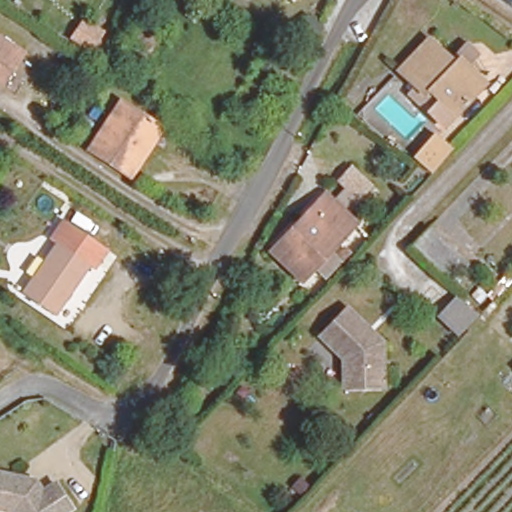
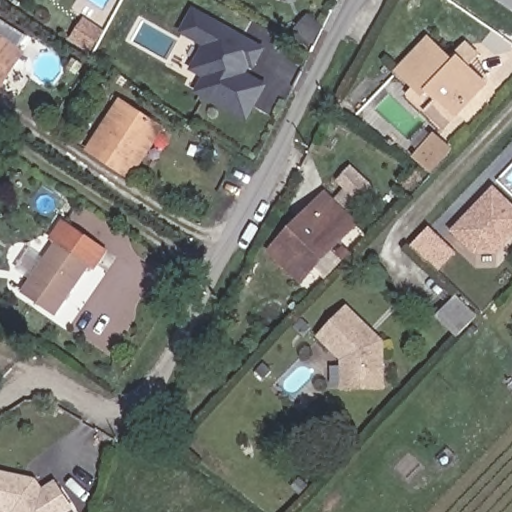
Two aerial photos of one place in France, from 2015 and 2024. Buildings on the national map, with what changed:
new [(247,123),(193,92),(201,79),(189,71),(202,47),(177,32),(193,7),(266,49),(255,70),(250,68),(247,75),(267,86),(247,123)]
unchanged [(91,52),(69,39),(82,17),(106,31),(91,52)]
unchanged [(449,60),(467,44),(483,58),(472,70),(491,87),(445,132),(406,97),(413,91),(395,75),(427,39),(449,60)]
unchanged [(11,95),(0,88),(0,42),(32,64),(11,95)]
unchanged [(141,163),(130,179),(90,151),(121,102),(154,124),(162,129),(141,163)]
unchanged [(422,167),(407,153),(425,132),(442,146),(422,167)]
unchanged [(342,191),(335,184),(351,166),(376,187),(352,213),(335,199),(342,191)]
new [(492,187),(512,206),(512,237),(496,255),(473,255),(449,232),(492,187)]
unchanged [(361,227),(306,282),(274,252),(304,220),(328,195),(333,200),(336,202),(337,204),(352,219),(361,227)]
unchanged [(69,225),(109,252),(95,272),(89,267),(59,313),(25,292),(56,245),(69,225)]
unchanged [(432,229),(465,261),(445,282),(412,250),(432,229)]
new [(457,300),(474,315),(458,332),(442,316),(457,300)]
unchanged [(383,337),(381,387),(340,387),(339,352),(315,331),(349,301),(383,337)]
unchanged [(42,491),(56,482),(73,512),(0,512),(0,470),(35,478),(42,491)]

